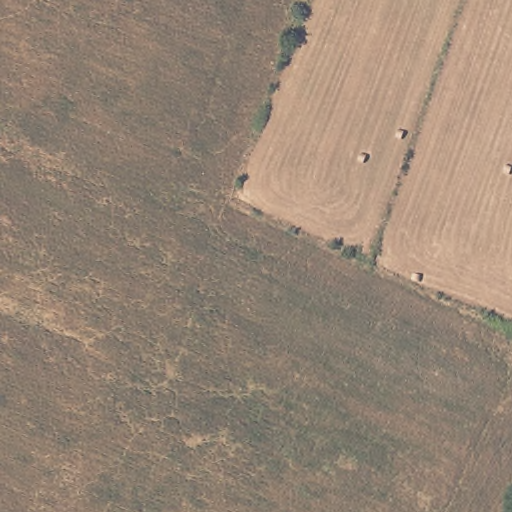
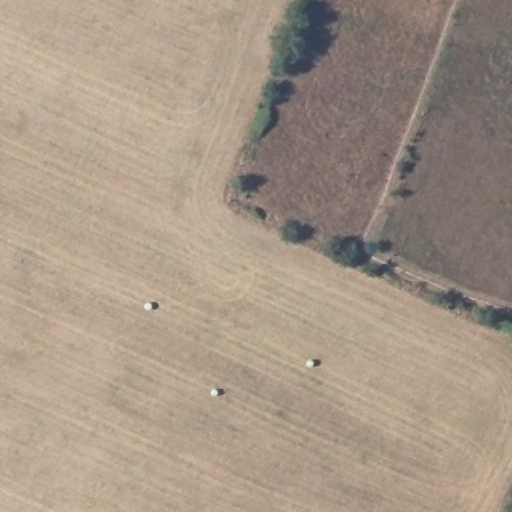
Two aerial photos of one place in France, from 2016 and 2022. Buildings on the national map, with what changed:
[]

